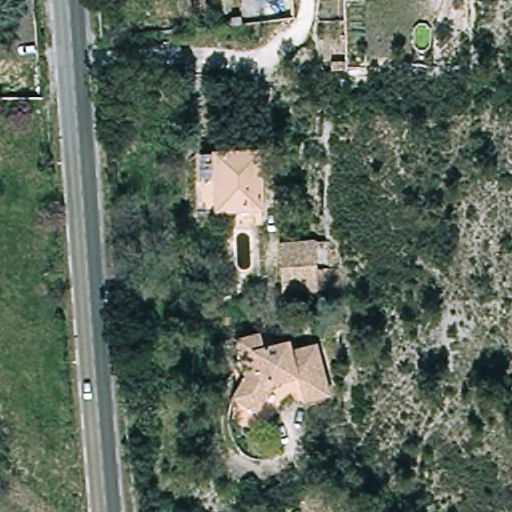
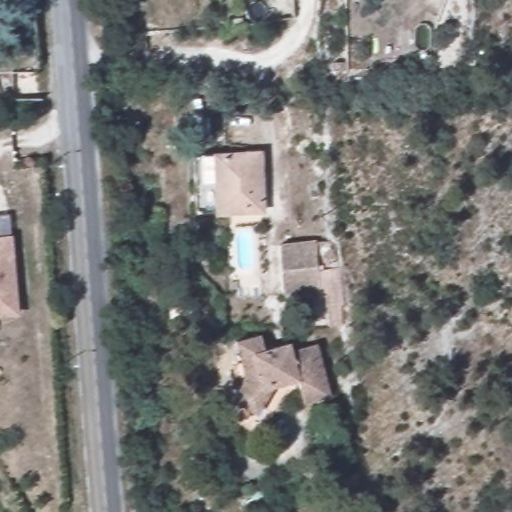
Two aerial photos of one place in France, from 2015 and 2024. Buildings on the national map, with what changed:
unchanged [(204,202),(202,152),(265,151),(267,211),(204,212),(204,202)]
new [(12,236),(19,317),(0,318),(0,237),(12,236)]
unchanged [(321,325),(320,305),(319,285),(277,288),(273,246),(309,243),(324,243),(325,268),(334,267),(335,284),(337,303),(338,324),(321,325)]
unchanged [(256,332),(260,347),(284,340),(287,349),(311,342),(326,395),(302,402),(296,379),(267,387),(252,413),(226,398),(239,377),(238,373),(228,340),(249,334),(256,332)]

